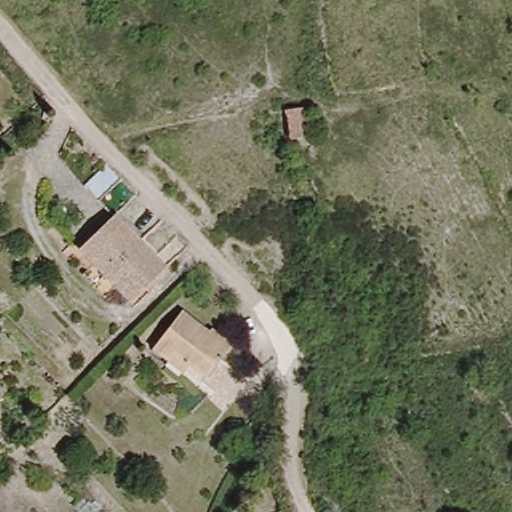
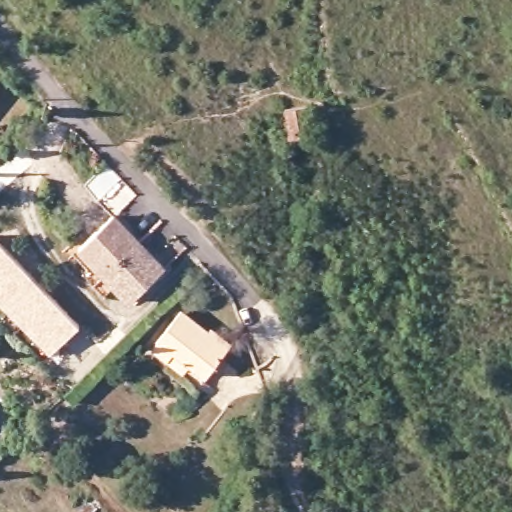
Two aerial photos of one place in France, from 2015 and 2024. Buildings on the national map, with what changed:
unchanged [(309,132),(287,136),(283,111),(305,109),(309,132)]
unchanged [(105,209),(97,199),(117,179),(126,187),(135,196),(112,216),(112,215),(105,209)]
unchanged [(80,247),(112,215),(125,229),(137,241),(152,259),(162,270),(130,301),(117,287),(107,296),(85,272),(95,265),(80,247)]
new [(50,355),(0,305),(0,241),(80,326),(50,355)]
unchanged [(170,365),(147,347),(180,310),(207,331),(208,329),(227,343),(200,376),(193,383),(170,365)]

